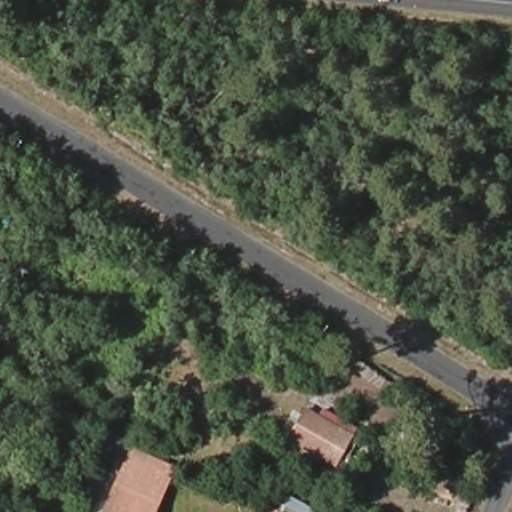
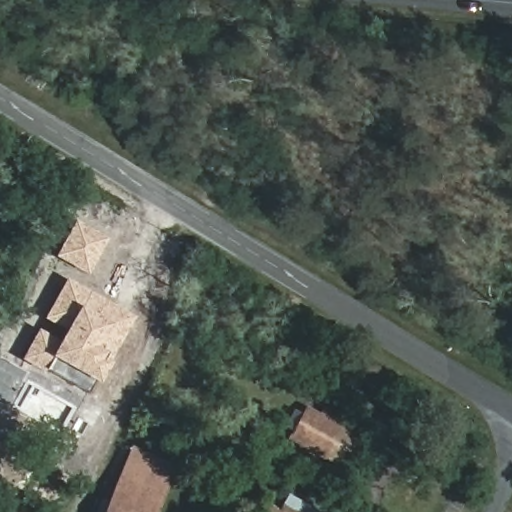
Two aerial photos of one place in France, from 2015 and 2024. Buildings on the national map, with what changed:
new [(53,257),(73,220),(106,239),(86,275),(53,257)]
new [(45,369),(43,373),(20,359),(36,329),(58,340),(63,330),(42,319),(66,279),(135,317),(109,362),(96,384),(92,382),(86,394),(45,369)]
unchanged [(314,457),(285,441),(301,412),(330,428),(346,437),(330,466),(314,457)]
unchanged [(137,445),(173,462),(149,512),(105,512),(137,445)]
unchanged [(271,507),(280,512),(268,512),(271,507)]

